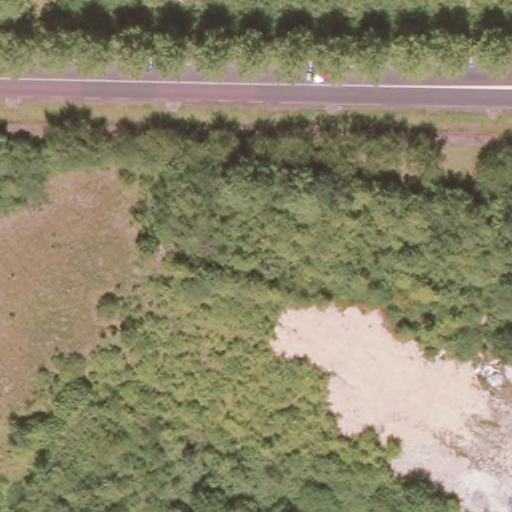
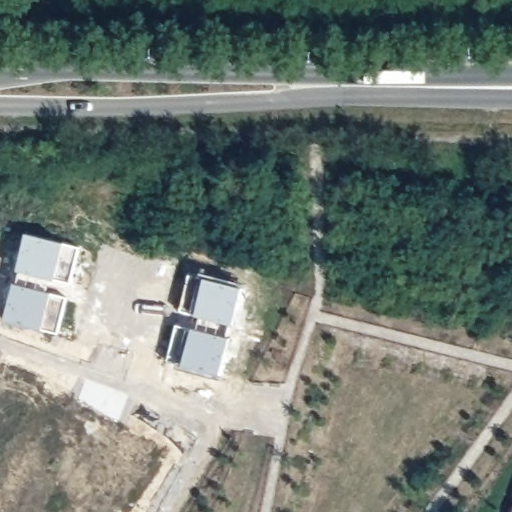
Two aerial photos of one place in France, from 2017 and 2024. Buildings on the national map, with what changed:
new [(80,247),(70,285),(56,281),(51,279),(48,291),(52,292),(67,297),(58,332),(43,328),(42,331),(5,321),(15,283),(17,283),(20,272),(17,271),(26,233),(64,242),(80,247)]
new [(232,325),(230,325),(227,337),(231,338),(220,378),(178,368),(180,362),(167,360),(177,324),(192,327),(195,315),(180,312),(190,274),(200,277),(201,273),(244,284),(232,325)]

